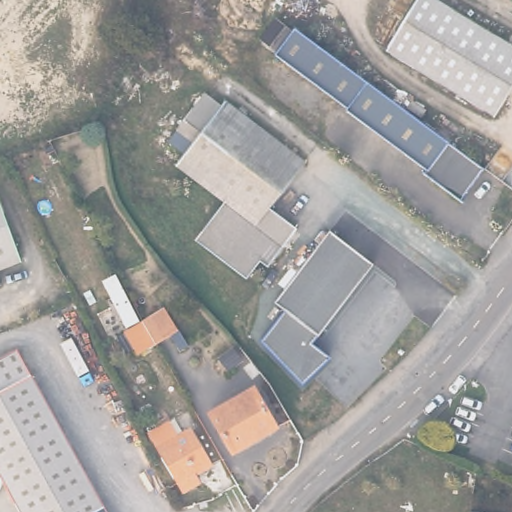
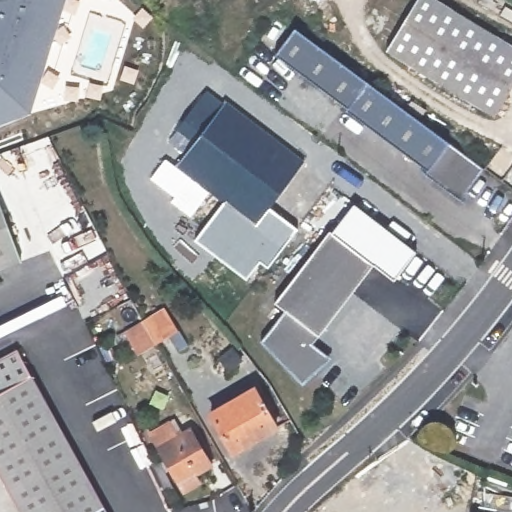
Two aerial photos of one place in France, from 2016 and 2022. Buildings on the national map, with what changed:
new [(0,122),(0,0),(66,0),(31,110),(0,122)]
unchanged [(437,0),(512,46),(512,87),(495,115),(386,49),(416,0),(437,0)]
unchanged [(460,200),(425,173),(427,169),(346,109),(347,107),(275,53),(295,27),(484,167),(460,200)]
unchanged [(204,85),(221,99),(225,95),(305,156),(270,201),(297,223),(268,260),(260,254),(246,272),(196,234),(225,196),(176,159),(185,146),(170,134),(178,124),(177,123),(204,85)]
unchanged [(0,268),(0,202),(21,260),(0,268)]
unchanged [(375,264),(311,343),(329,357),(303,384),(260,341),(285,310),(274,302),(329,231),(375,264)]
unchanged [(0,285),(0,280),(1,284),(0,285)]
unchanged [(125,327),(143,316),(165,302),(179,324),(184,333),(176,338),(170,329),(156,338),(138,350),(135,344),(126,348),(117,332),(125,327)]
unchanged [(107,505),(94,512),(26,512),(0,465),(0,360),(21,348),(107,505)]
unchanged [(223,375),(215,365),(235,351),(242,362),(223,375)]
unchanged [(276,426),(233,451),(210,412),(254,387),(276,426)]
unchanged [(211,464),(195,474),(199,481),(183,490),(150,433),(169,422),(175,418),(183,432),(190,428),(211,464)]
unchanged [(107,505),(111,512),(94,512),(107,505)]

